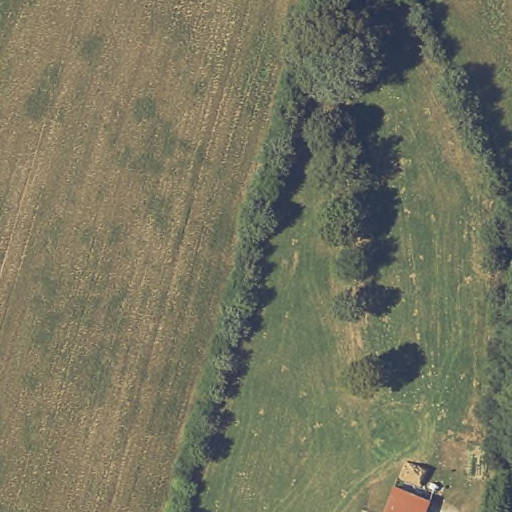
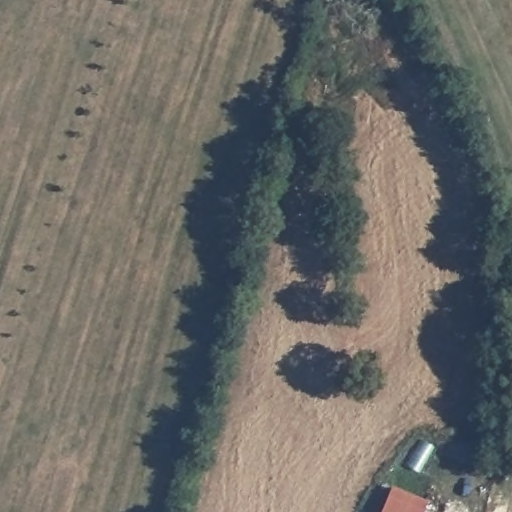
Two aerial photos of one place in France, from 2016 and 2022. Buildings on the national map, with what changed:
unchanged [(428,498),(422,512),(382,512),(393,484),(428,498)]

